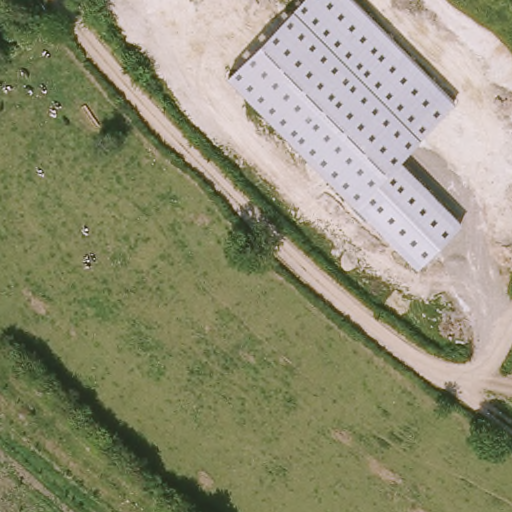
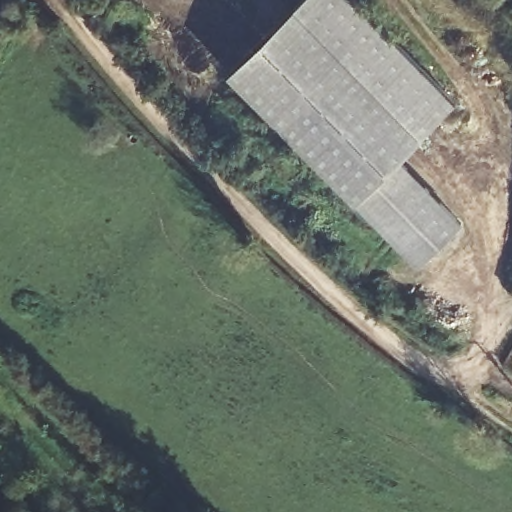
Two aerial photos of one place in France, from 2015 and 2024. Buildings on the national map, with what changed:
unchanged [(455,102),(399,158),(462,222),(419,265),(226,74),(300,0),(353,0),(455,102)]

